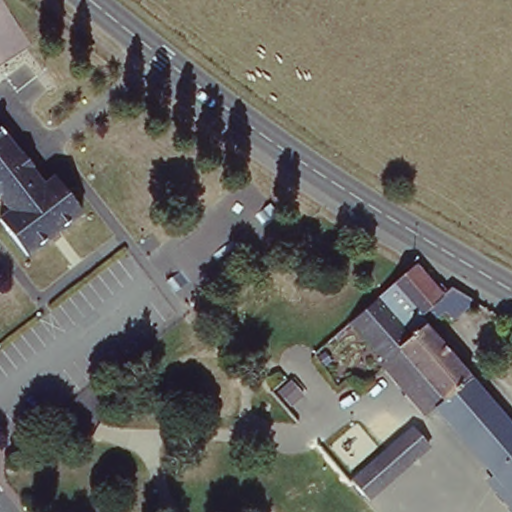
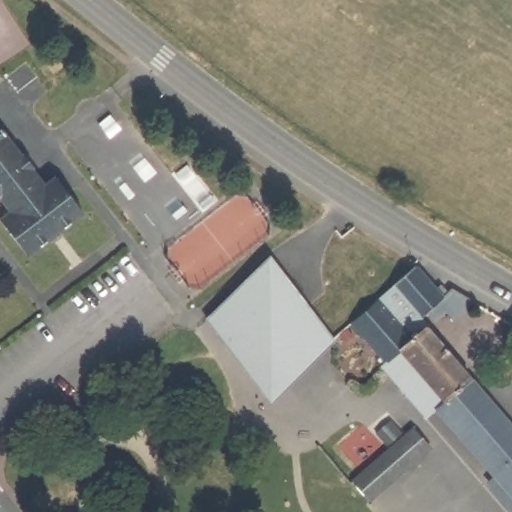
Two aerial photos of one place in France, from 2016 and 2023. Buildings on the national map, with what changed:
unchanged [(26,158),(36,171),(33,174),(47,193),(61,183),(86,217),(29,262),(0,226),(11,217),(0,203),(0,132),(21,160),(26,158)]
new [(275,261),(338,341),(271,397),(207,318),(275,261)]
unchanged [(442,287),(449,295),(454,290),(477,304),(454,324),(445,315),(438,321),(431,314),(424,319),(428,324),(427,327),(483,392),(511,423),(512,424),(512,497),(501,483),(441,412),(427,422),(381,366),(386,361),(351,322),(416,266),(422,270),(438,290),(442,287)]
unchanged [(412,431),(431,451),(371,505),(351,482),(412,431)]

